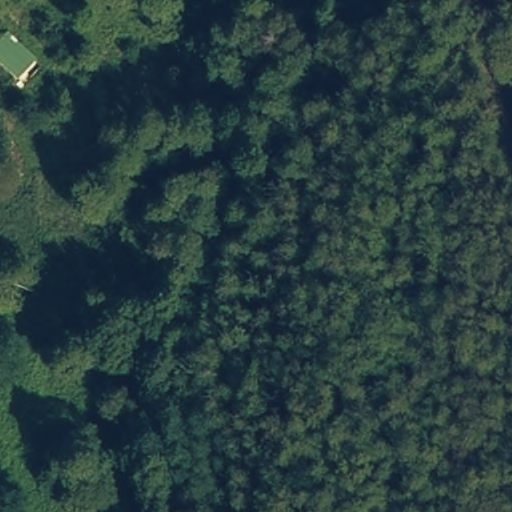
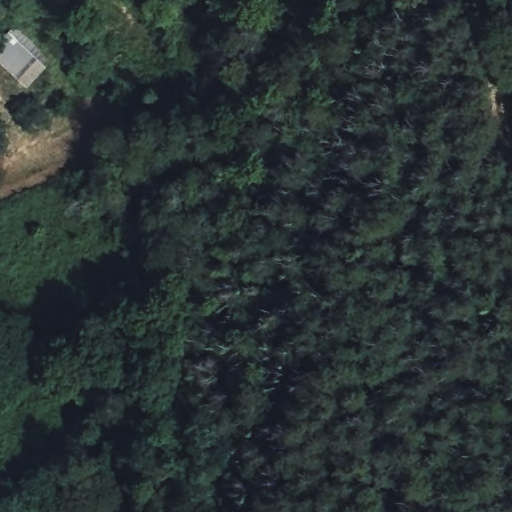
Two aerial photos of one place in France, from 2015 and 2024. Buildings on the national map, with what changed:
unchanged [(37,60),(17,80),(0,63),(0,40),(7,31),(37,60)]

